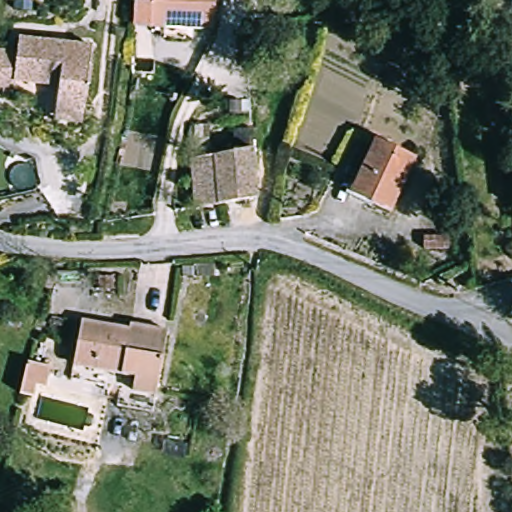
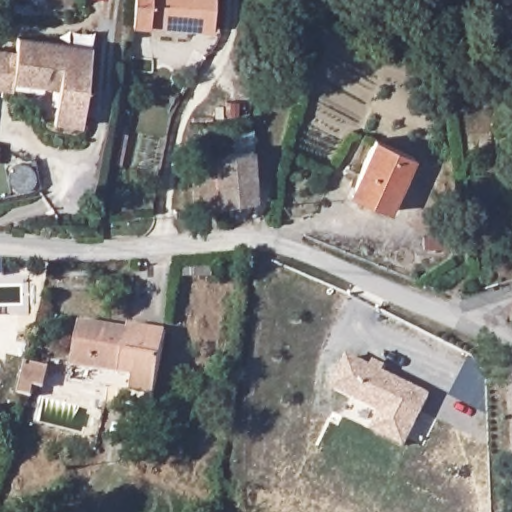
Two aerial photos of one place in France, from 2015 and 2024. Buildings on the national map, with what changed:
unchanged [(166,37),(167,27),(137,26),(138,9),(138,0),(218,0),(216,30),(193,30),(192,39),(166,37)]
unchanged [(55,125),(57,110),(59,90),(53,89),(15,85),(14,92),(0,90),(0,52),(16,54),(17,40),(93,49),(85,113),(83,129),(55,125)]
unchanged [(479,73),(480,73),(481,85),(459,89),(457,76),(479,73)]
unchanged [(354,185),(374,140),(415,158),(389,212),(371,204),(349,194),(354,185)]
unchanged [(190,160),(251,149),(254,199),(193,210),(190,160)]
unchanged [(448,236),(448,250),(422,250),(423,236),(448,236)]
unchanged [(212,265),(213,275),(195,277),(195,275),(182,276),(182,266),(212,265)]
unchanged [(128,335),(129,330),(166,337),(154,400),(131,396),(133,381),(72,371),(80,327),(128,335)]
new [(375,361),(387,367),(384,372),(432,395),(405,448),(371,432),(380,413),(331,390),(348,355),(372,366),(375,361)]
unchanged [(18,395),(24,374),(26,363),(48,368),(42,389),(33,386),(31,398),(18,395)]

